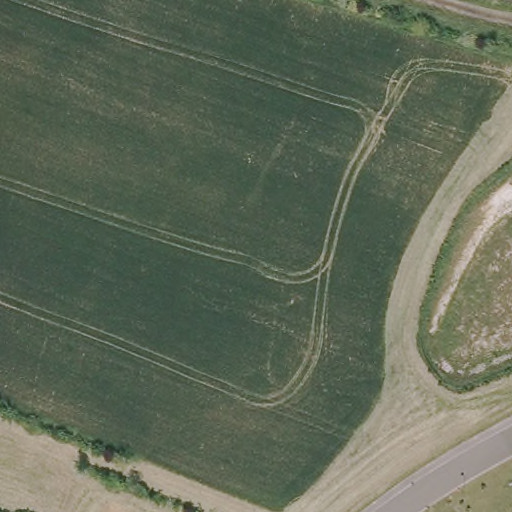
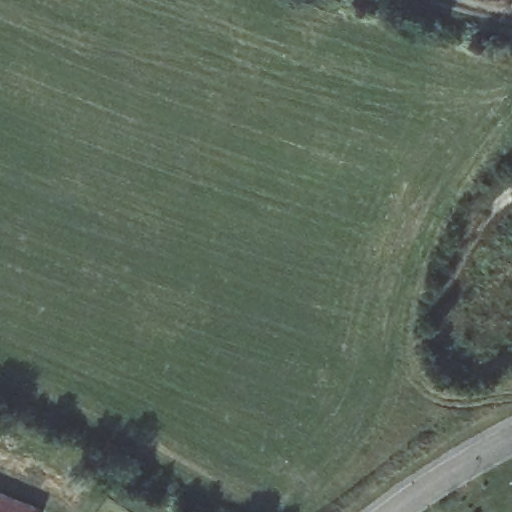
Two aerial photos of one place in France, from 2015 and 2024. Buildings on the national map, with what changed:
new [(0,512),(0,492),(40,508),(39,512),(0,512)]

